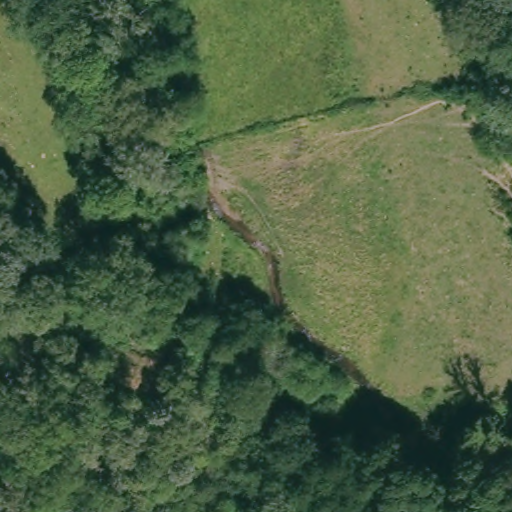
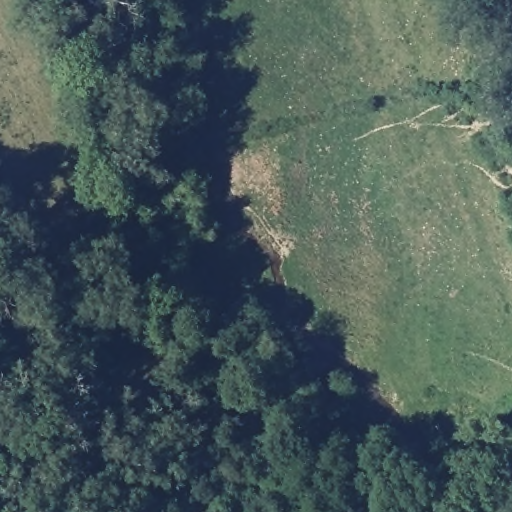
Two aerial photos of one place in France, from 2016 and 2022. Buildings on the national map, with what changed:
unchanged [(296,388),(298,392),(268,403),(265,396),(248,360),(276,348),(296,388)]

